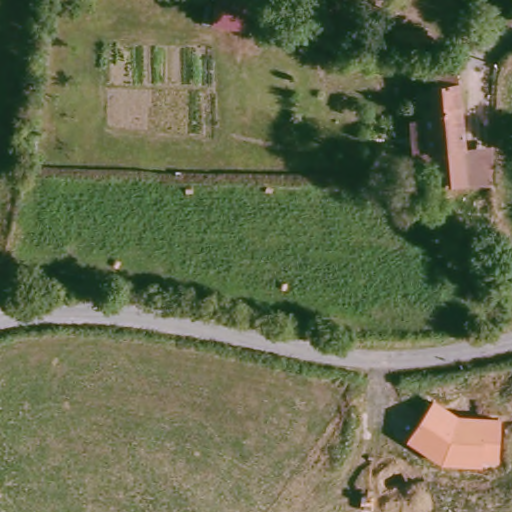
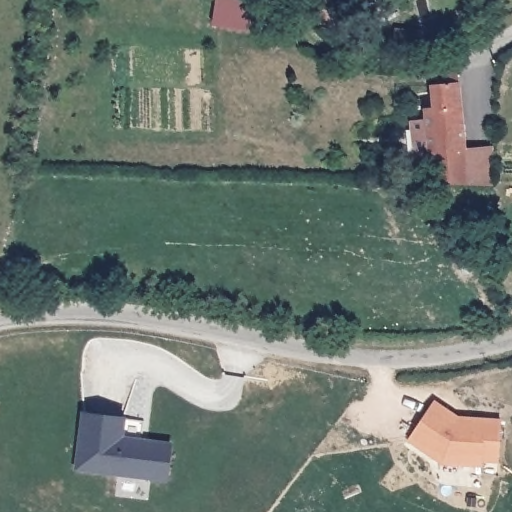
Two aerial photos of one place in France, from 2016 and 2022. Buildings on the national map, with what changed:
unchanged [(212,22),(215,0),(267,0),(263,29),(212,22)]
unchanged [(311,14),(309,5),(317,0),(334,0),(347,21),(327,39),(311,14)]
unchanged [(391,48),(393,32),(421,35),(419,54),(391,48)]
unchanged [(486,184),(457,183),(424,181),(424,155),(423,155),(423,117),(423,112),(427,112),(432,112),(432,89),(437,89),(437,83),(437,77),(458,76),(458,82),(459,154),(486,154),(486,184)]
unchanged [(434,398),(459,416),(488,418),(500,419),(498,466),(483,468),(439,466),(404,441),(434,398)]
new [(123,417),(126,417),(124,436),(173,442),(168,481),(74,469),(83,412),(101,413),(101,399),(124,401),(123,417)]

